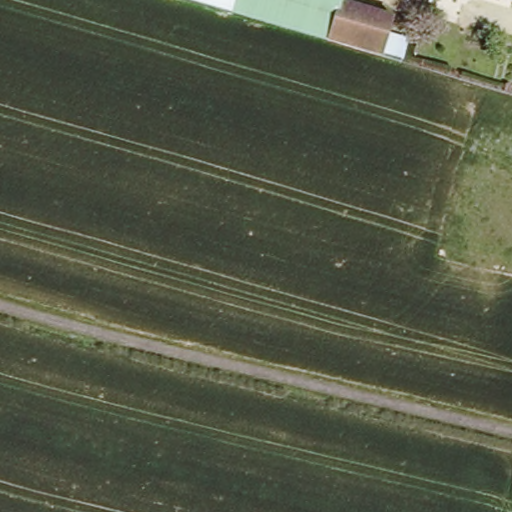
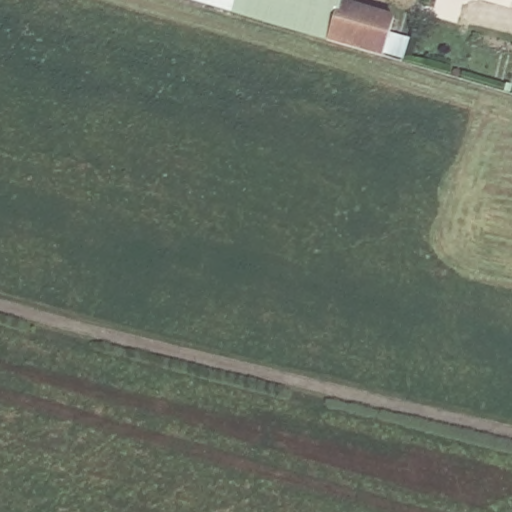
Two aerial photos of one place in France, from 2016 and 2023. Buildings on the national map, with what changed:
unchanged [(233,0),(230,10),(197,0),(233,0)]
unchanged [(233,0),(340,0),(329,38),(230,10),(233,0)]
unchanged [(340,0),(393,16),(381,54),(329,38),(340,0)]

